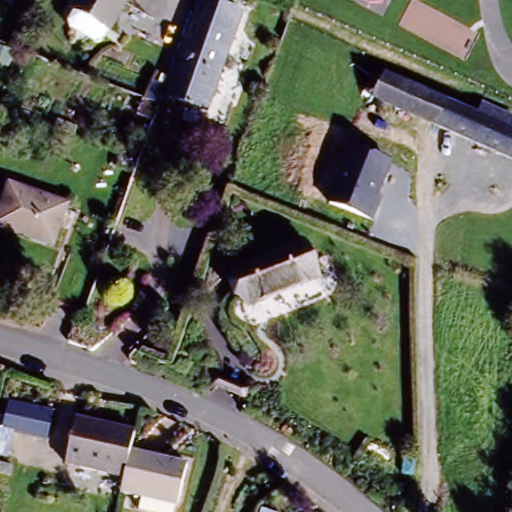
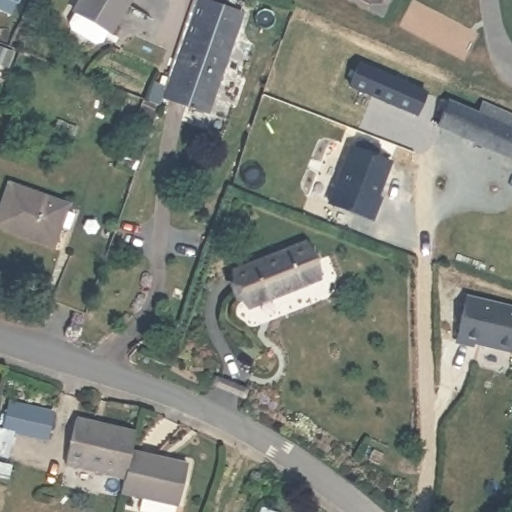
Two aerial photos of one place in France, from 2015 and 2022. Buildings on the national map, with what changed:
unchanged [(76,17),(71,15),(80,0),(125,0),(108,33),(101,47),(68,31),(76,17)]
unchanged [(198,9),(235,23),(209,115),(165,100),(198,9)]
unchanged [(368,86),(373,73),(385,76),(388,71),(489,115),(494,105),(512,112),(512,158),(373,99),(376,90),(368,86)]
unchanged [(330,204),(354,144),(392,161),(379,196),(383,199),(375,222),(330,204)]
unchanged [(56,205),(42,245),(0,230),(0,186),(56,205)]
unchanged [(303,238),(318,272),(253,300),(238,270),(303,238)]
new [(512,309),(512,352),(474,343),(473,347),(457,343),(468,299),(512,309)]
unchanged [(53,410),(47,437),(3,427),(10,400),(53,410)]
unchanged [(133,447),(125,481),(65,468),(76,421),(137,433),(133,447)]
unchanged [(134,511),(138,495),(123,492),(125,481),(133,447),(189,459),(180,504),(173,502),(171,512),(143,512),(134,511)]

